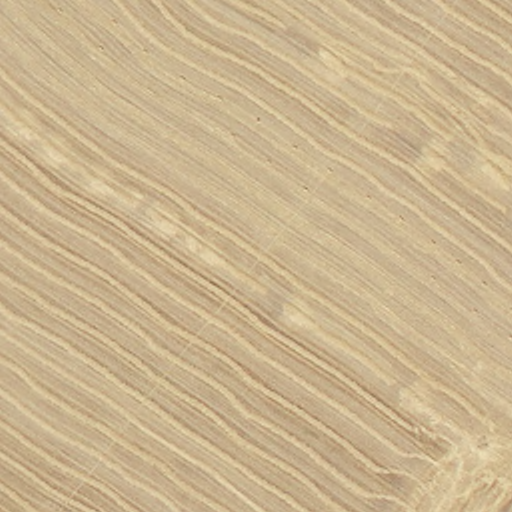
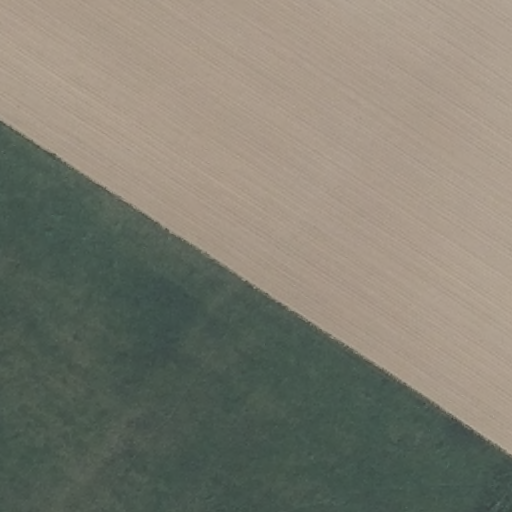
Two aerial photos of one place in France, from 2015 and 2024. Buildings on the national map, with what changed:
[]

